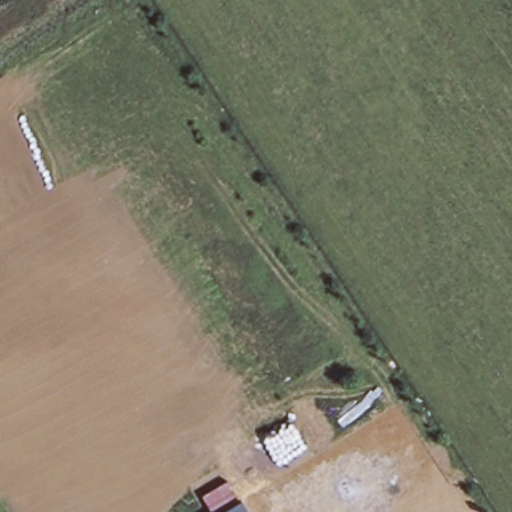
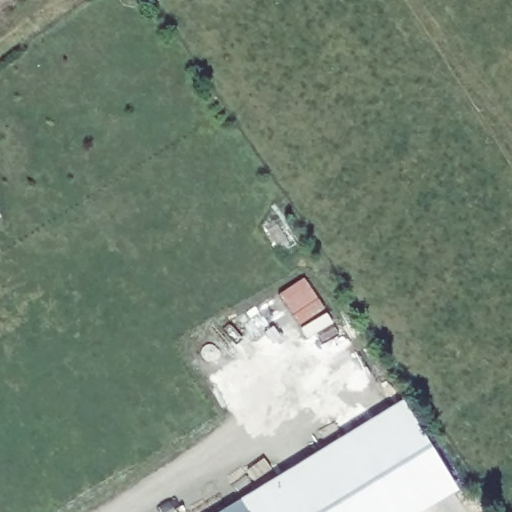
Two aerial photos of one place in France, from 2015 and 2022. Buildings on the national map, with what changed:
new [(402,405),(459,497),(433,512),(247,512),(242,504),(402,405)]
unchanged [(242,504),(247,512),(229,512),(242,504)]

